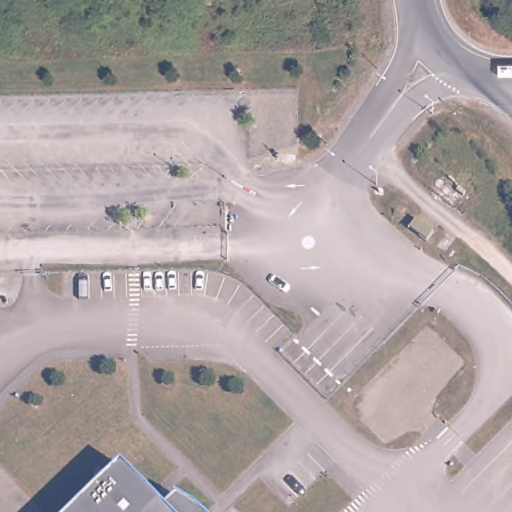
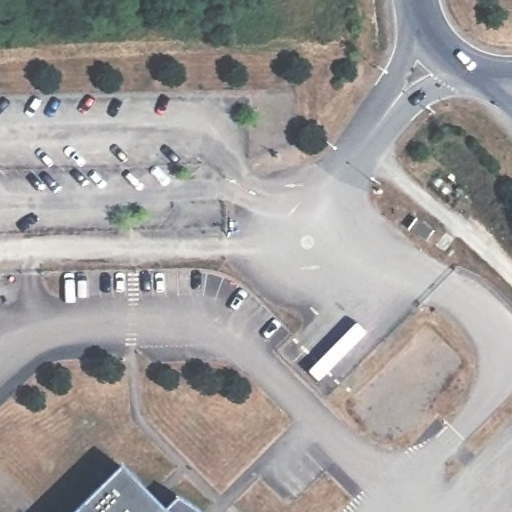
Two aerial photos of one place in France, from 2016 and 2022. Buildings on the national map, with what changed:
unchanged [(415,219),(427,228),(432,232),(426,241),(420,237),(408,228),(415,219)]
unchanged [(164,510),(176,498),(190,507),(191,507),(197,512),(74,512),(120,466),(164,510)]

